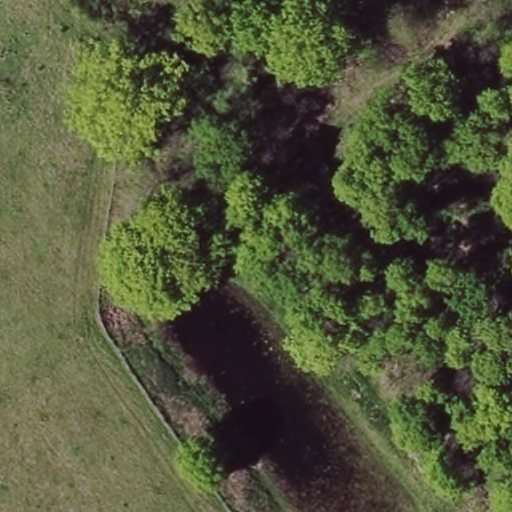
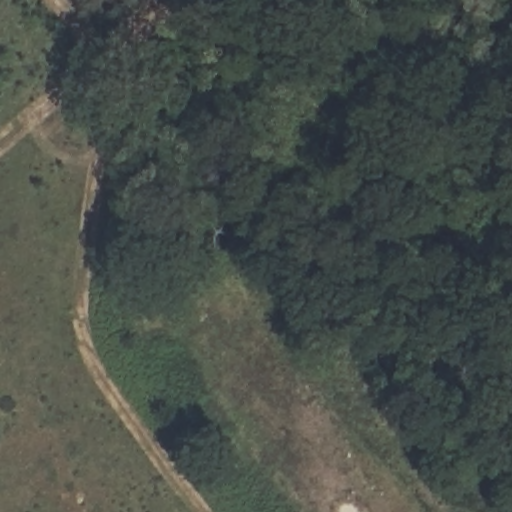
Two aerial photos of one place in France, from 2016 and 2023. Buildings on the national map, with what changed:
unchanged [(172,253),(117,281),(132,229),(136,137),(162,155),(173,214),(172,253)]

